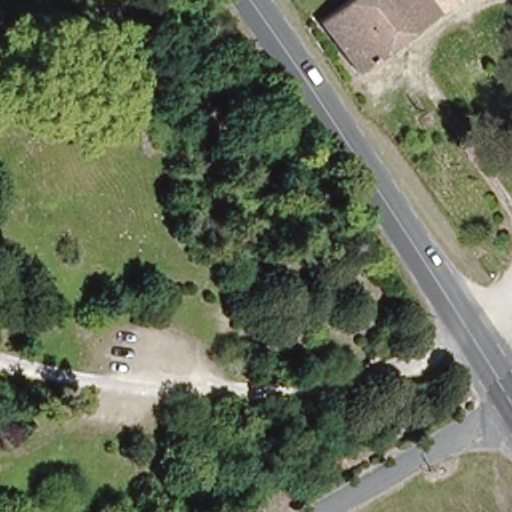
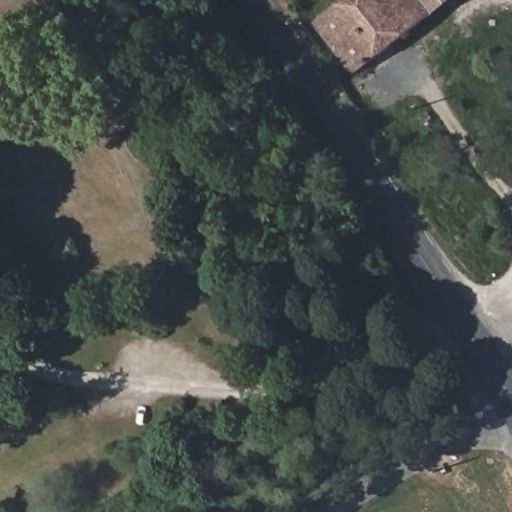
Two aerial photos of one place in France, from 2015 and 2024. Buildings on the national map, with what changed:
unchanged [(362,72),(324,22),(352,0),(455,0),(362,72)]

